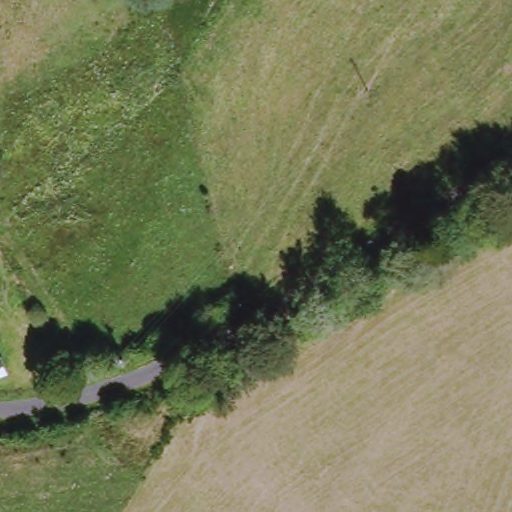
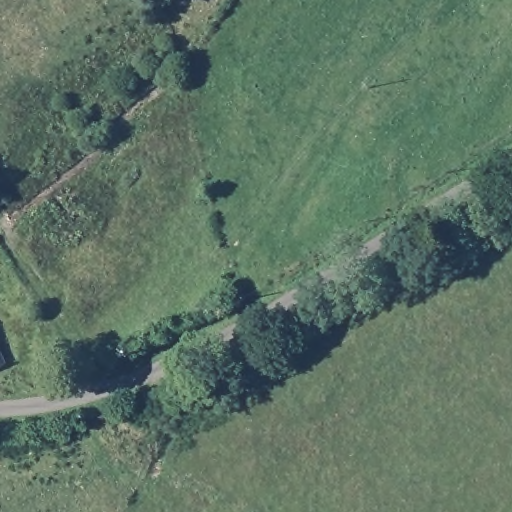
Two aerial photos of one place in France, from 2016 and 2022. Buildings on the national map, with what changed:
unchanged [(2,363),(0,364),(0,360),(2,363)]

